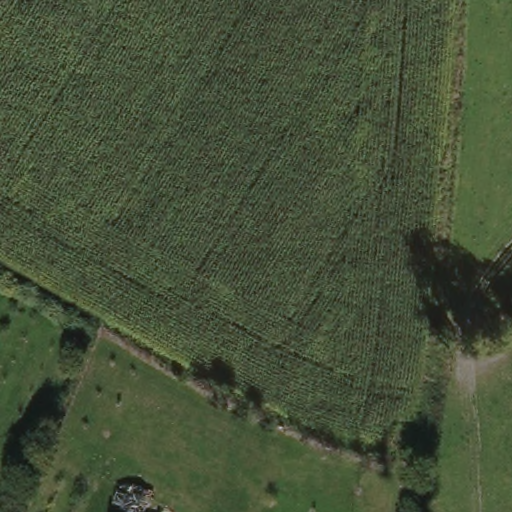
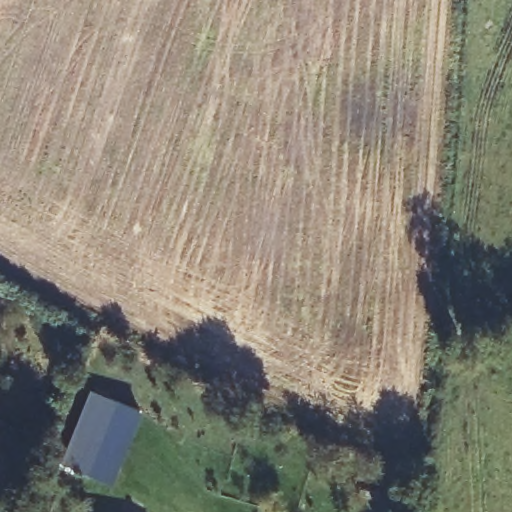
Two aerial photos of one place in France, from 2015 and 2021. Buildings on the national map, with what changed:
new [(62,463),(91,390),(142,408),(112,483),(62,463)]

